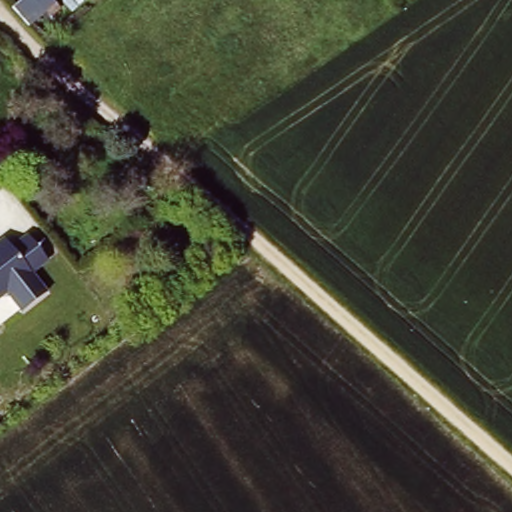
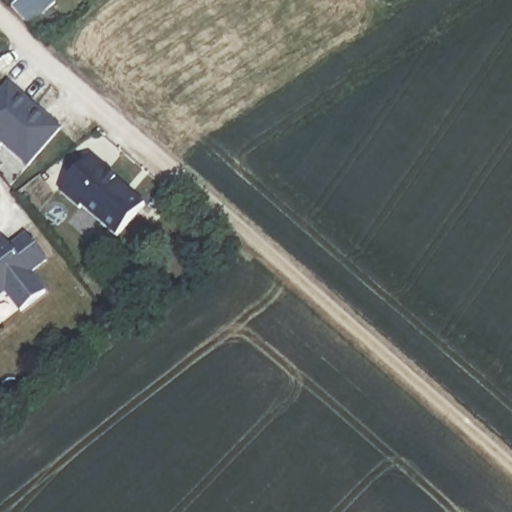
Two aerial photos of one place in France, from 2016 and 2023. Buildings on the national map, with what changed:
unchanged [(10,0),(47,0),(27,18),(10,0)]
new [(0,142),(0,93),(10,81),(62,127),(28,167),(0,142)]
new [(116,237),(83,208),(81,210),(61,193),(91,154),(110,169),(109,171),(146,203),(116,237)]
unchanged [(12,247),(29,235),(49,262),(34,274),(47,292),(21,312),(7,293),(0,298),(0,239),(4,236),(12,247)]

